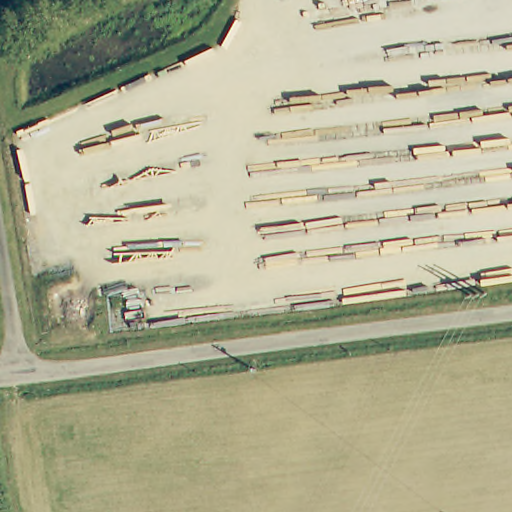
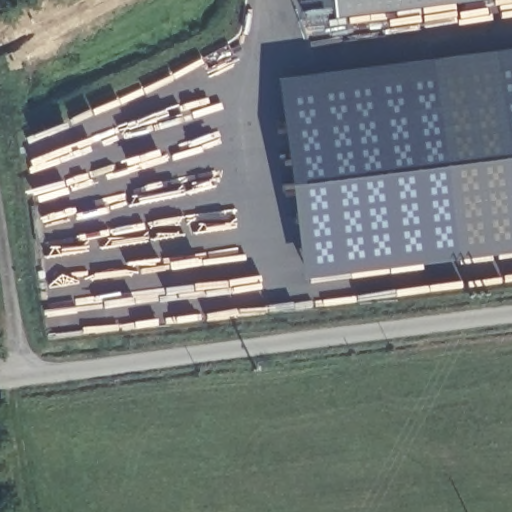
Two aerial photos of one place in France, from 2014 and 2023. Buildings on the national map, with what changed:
new [(336,19),(333,0),(487,0),(336,19)]
new [(275,79),(512,50),(512,252),(304,280),(275,79)]

